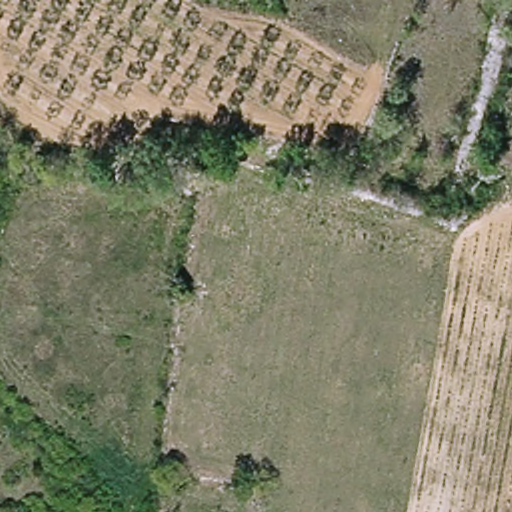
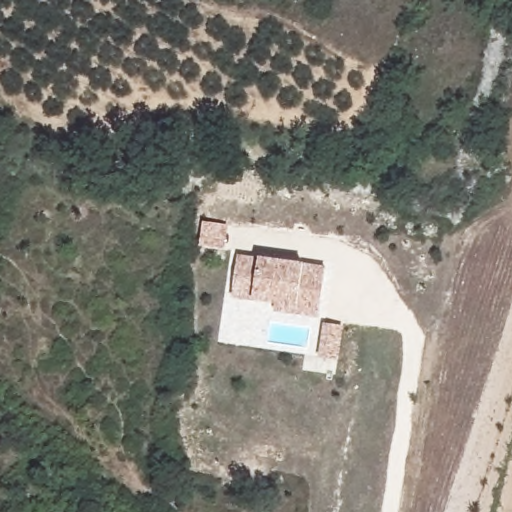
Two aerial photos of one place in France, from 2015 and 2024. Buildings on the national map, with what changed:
new [(276,304),(252,300),(232,298),(238,255),(259,257),(305,263),(326,266),(318,319),(274,312),(276,304)]

